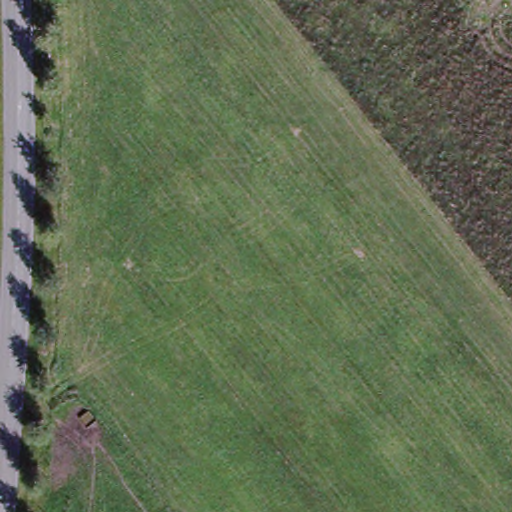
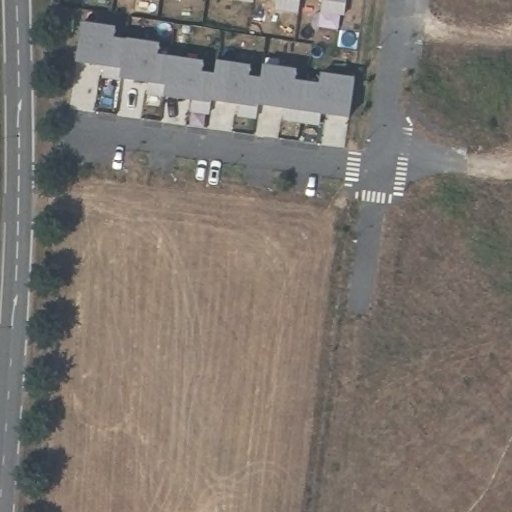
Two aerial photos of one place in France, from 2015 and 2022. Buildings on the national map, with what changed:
new [(293,11),(270,8),(271,0),(295,0),(293,11)]
new [(340,12),(317,10),(318,0),(342,0),(340,12)]
new [(78,20),(112,25),(111,36),(123,38),(119,75),(100,72),(102,60),(73,57),(78,20)]
new [(123,38),(157,42),(155,53),(167,55),(162,90),(145,89),(147,77),(119,75),(123,38)]
new [(167,55),(200,60),(199,70),(212,72),(209,95),(207,108),(189,105),(190,95),(162,90),(167,55)]
new [(212,72),(213,59),(247,63),(246,74),(258,75),(255,99),(255,112),(236,110),(237,99),(209,95),(212,72)]
new [(258,75),(259,62),(293,66),(292,77),(304,79),(300,116),(282,114),(283,102),(255,99),(258,75)]
new [(304,79),(316,80),(317,70),(352,74),(347,111),(318,107),(317,118),(300,116),(304,79)]

